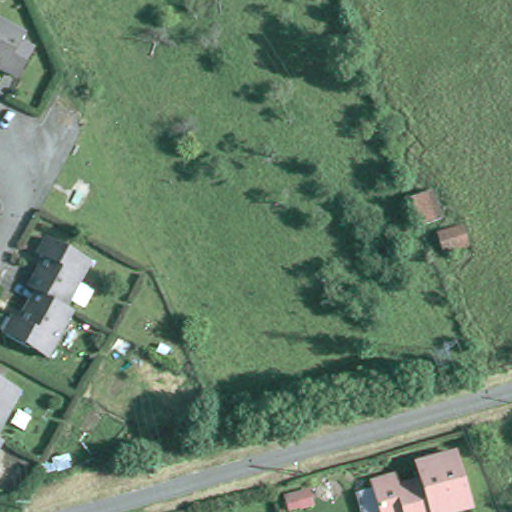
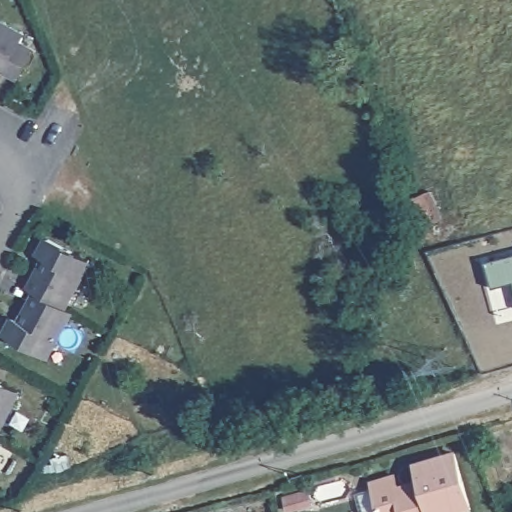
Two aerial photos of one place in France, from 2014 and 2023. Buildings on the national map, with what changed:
unchanged [(19,43),(33,51),(19,76),(0,66),(0,23),(23,36),(19,43)]
unchanged [(434,190),(443,218),(418,229),(408,201),(434,190)]
unchanged [(466,246),(443,253),(438,235),(459,228),(466,246)]
unchanged [(20,320),(34,292),(28,288),(43,259),(36,255),(46,238),(87,260),(62,307),(69,311),(44,358),(3,336),(13,317),(20,320)]
new [(512,255),(512,283),(494,287),(488,262),(512,255)]
unchanged [(0,424),(0,381),(18,390),(0,424)]
unchanged [(375,482),(373,475),(394,469),(397,476),(399,482),(424,476),(419,460),(459,448),(464,465),(475,505),(449,512),(384,512),(375,482)]

